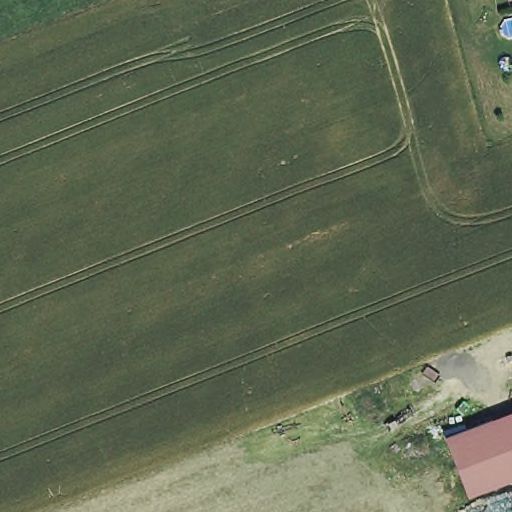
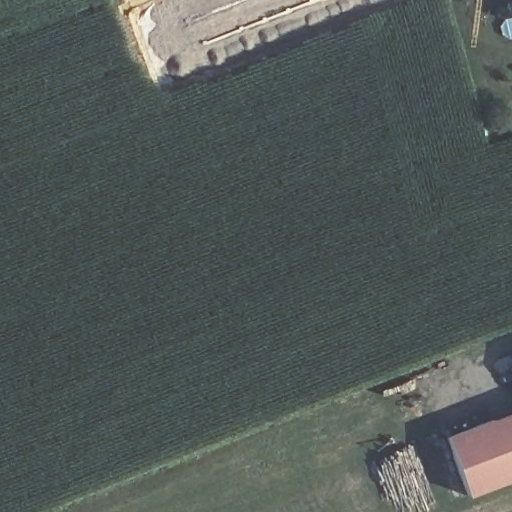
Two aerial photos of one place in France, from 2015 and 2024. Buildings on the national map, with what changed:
unchanged [(512,473),(468,490),(447,432),(512,408),(512,473)]

